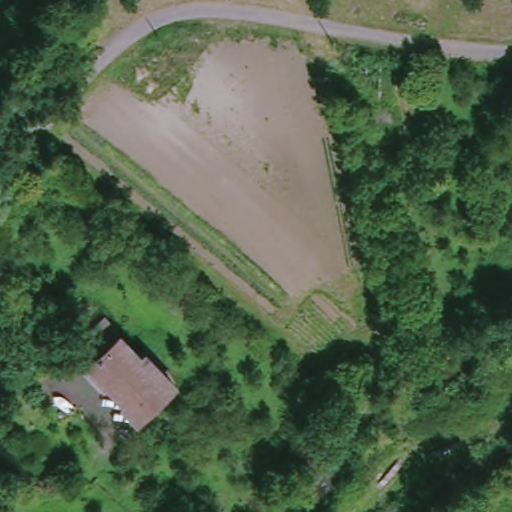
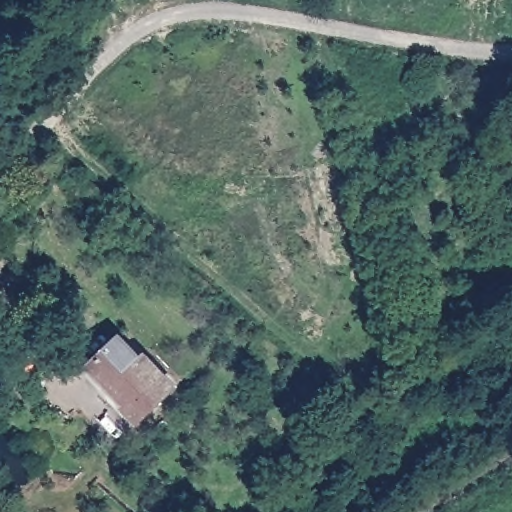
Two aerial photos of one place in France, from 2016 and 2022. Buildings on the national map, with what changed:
unchanged [(115,338),(138,362),(143,357),(172,389),(134,422),(120,408),(123,404),(85,365),(115,338)]
unchanged [(0,512),(0,508),(4,512),(0,512)]

